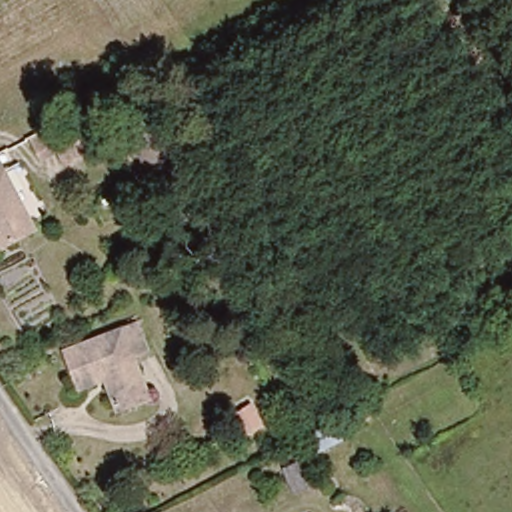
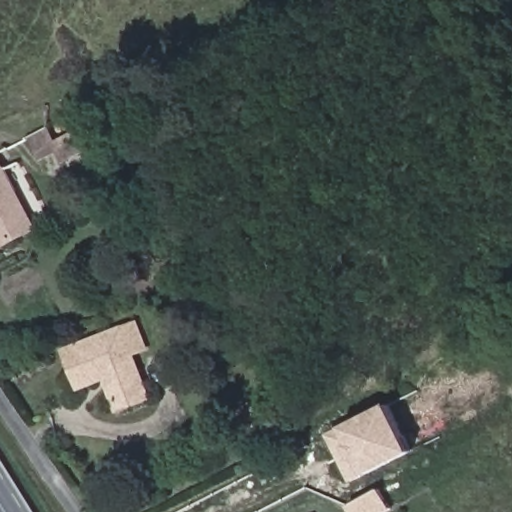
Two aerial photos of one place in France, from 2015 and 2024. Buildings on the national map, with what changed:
unchanged [(102,145),(79,157),(73,146),(56,155),(45,132),(62,124),(70,140),(92,128),(102,145)]
unchanged [(0,154),(11,149),(19,165),(3,174),(33,232),(0,249),(0,154)]
unchanged [(112,410),(100,377),(75,386),(62,352),(119,331),(134,325),(142,348),(127,354),(144,397),(112,410)]
unchanged [(272,427),(249,440),(236,418),(258,402),(272,427)]
new [(383,405),(407,451),(348,480),(325,433),(383,405)]
demolished [(343,436),(320,448),(313,436),(336,423),(343,436)]
demolished [(286,471),(301,464),(312,486),(297,493),(286,471)]
new [(387,507),(379,512),(349,512),(346,505),(377,487),(387,507)]

